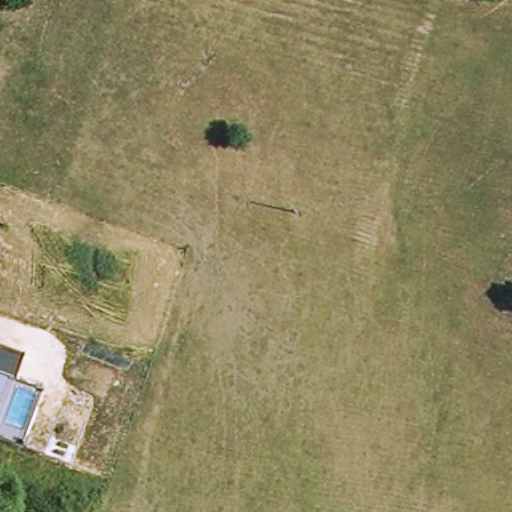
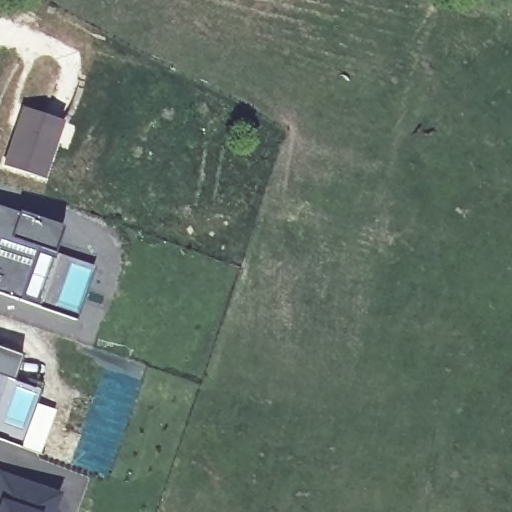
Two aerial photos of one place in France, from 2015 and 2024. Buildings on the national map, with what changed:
new [(22,106),(65,121),(46,179),(2,165),(22,106)]
new [(22,300),(0,293),(0,277),(0,206),(19,212),(63,227),(54,253),(93,267),(76,320),(22,300)]
unchanged [(15,380),(42,390),(20,445),(0,438),(0,346),(23,353),(15,380)]
new [(51,488),(65,494),(59,512),(0,512),(0,493),(6,474),(51,488)]

